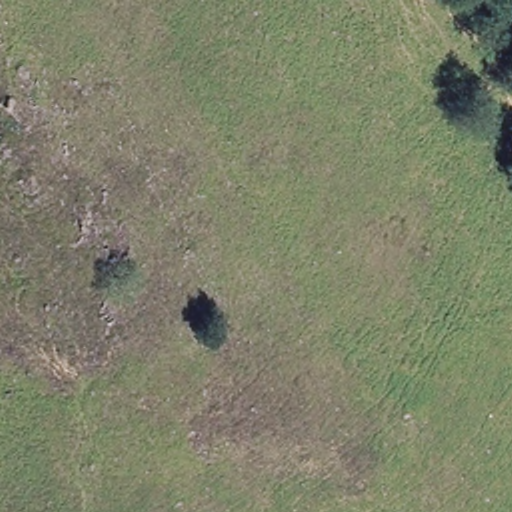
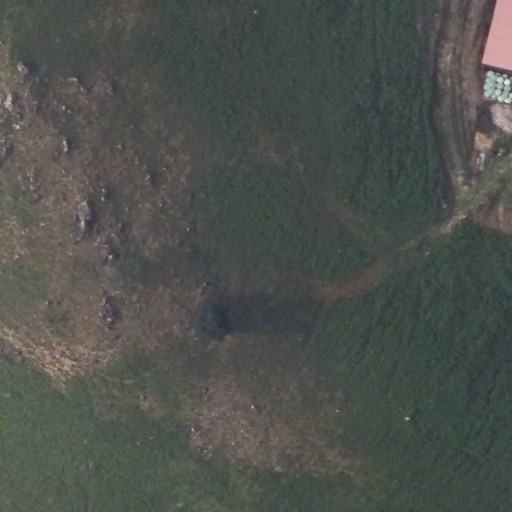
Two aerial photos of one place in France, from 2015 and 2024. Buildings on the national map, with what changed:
new [(497,0),(512,0),(512,71),(483,64),(497,0)]

